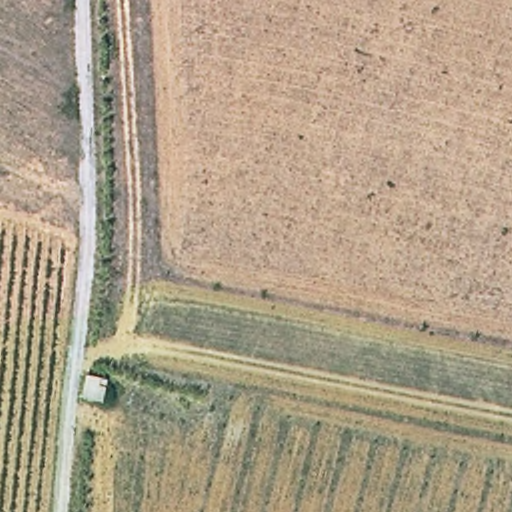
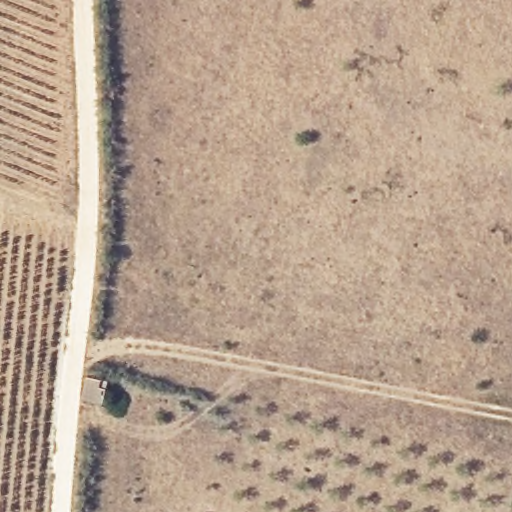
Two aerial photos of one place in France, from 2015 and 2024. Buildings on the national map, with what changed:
unchanged [(107,373),(104,397),(79,390),(84,368),(107,373)]

